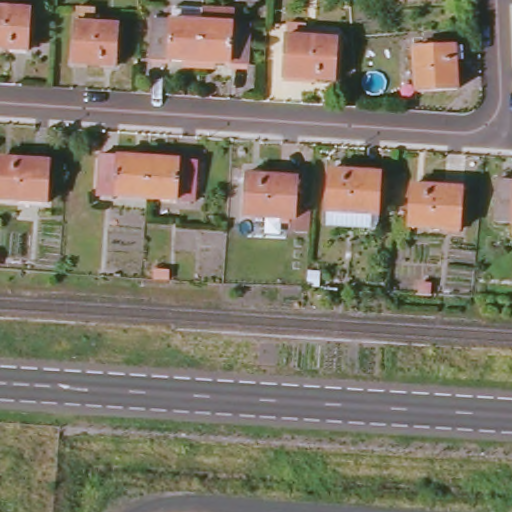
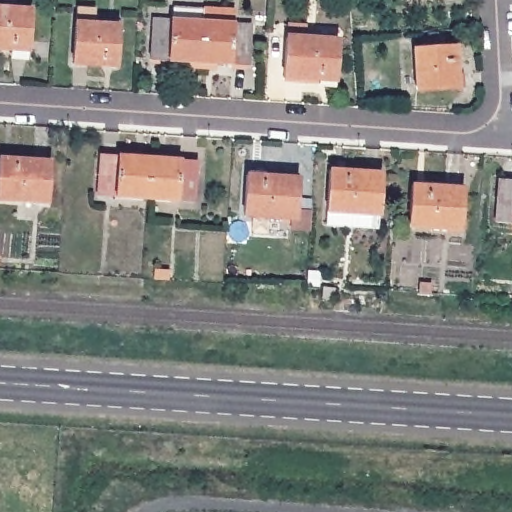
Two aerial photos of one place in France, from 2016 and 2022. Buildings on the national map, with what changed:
unchanged [(73,66),(77,7),(96,9),(95,24),(119,25),(116,68),(73,66)]
unchanged [(0,50),(0,9),(31,10),(28,51),(0,50)]
unchanged [(203,13),(200,63),(152,60),(155,20),(174,21),(175,9),(204,10),(203,13)]
unchanged [(203,13),(235,15),(235,25),(250,25),(247,65),(200,63),(203,13)]
unchanged [(335,86),(285,84),(287,41),(288,27),(307,29),(306,42),(338,45),(335,86)]
unchanged [(415,49),(455,47),(458,89),(417,91),(415,49)]
unchanged [(147,200),(97,197),(100,155),(150,159),(147,200)]
unchanged [(0,202),(0,159),(50,162),(48,205),(0,202)]
unchanged [(150,159),(196,162),(195,204),(147,200),(150,159)]
unchanged [(311,232),(297,232),(297,220),(245,217),(248,169),(263,170),(262,176),(299,179),(297,210),(312,211),(311,232)]
unchanged [(328,214),(330,178),(346,179),(346,172),(381,175),(380,216),(328,214)]
unchanged [(500,181),(512,182),(512,223),(497,222),(500,181)]
unchanged [(410,228),(412,192),(427,194),(427,187),(463,190),(460,232),(410,228)]

